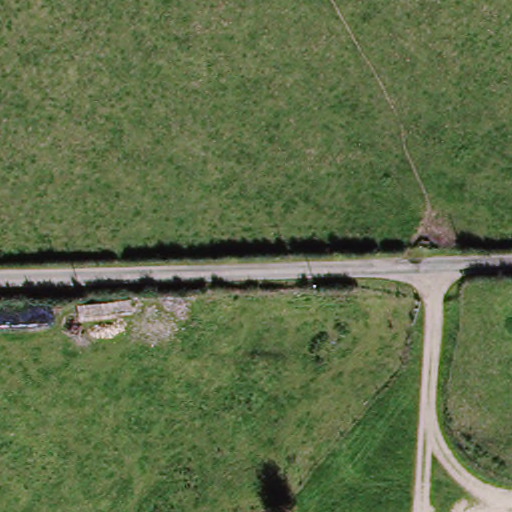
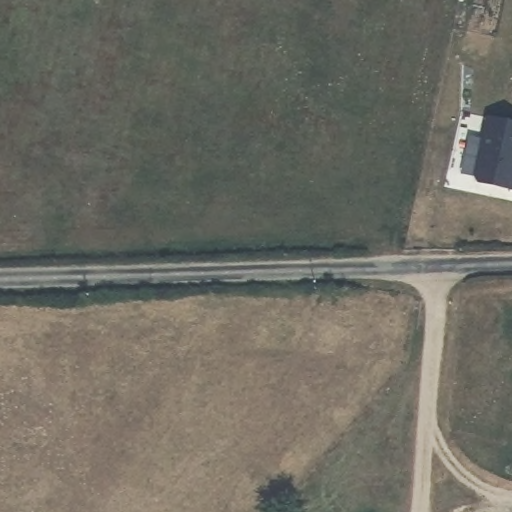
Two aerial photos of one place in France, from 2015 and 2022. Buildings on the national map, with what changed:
new [(494,118),(512,122),(512,189),(480,182),(494,118)]

